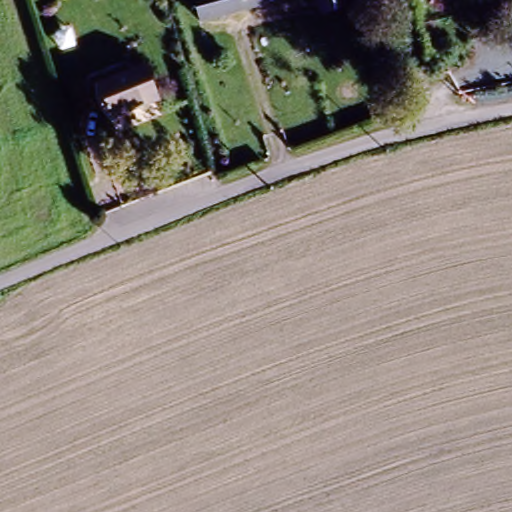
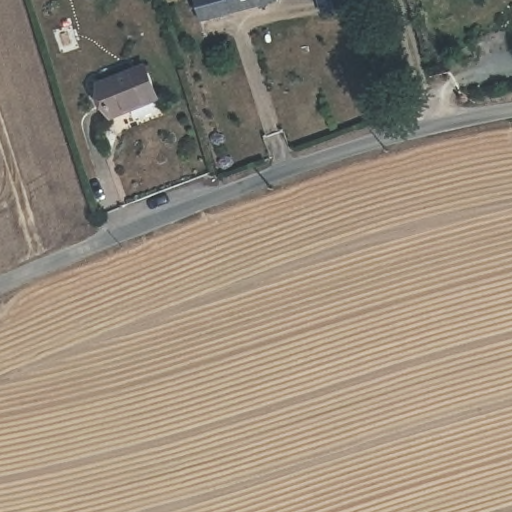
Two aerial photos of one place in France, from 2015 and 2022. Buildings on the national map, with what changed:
unchanged [(206,23),(205,17),(201,0),(282,0),(284,4),(206,23)]
unchanged [(326,29),(318,0),(343,0),(349,24),(326,29)]
unchanged [(135,67),(145,96),(98,114),(88,85),(135,67)]

